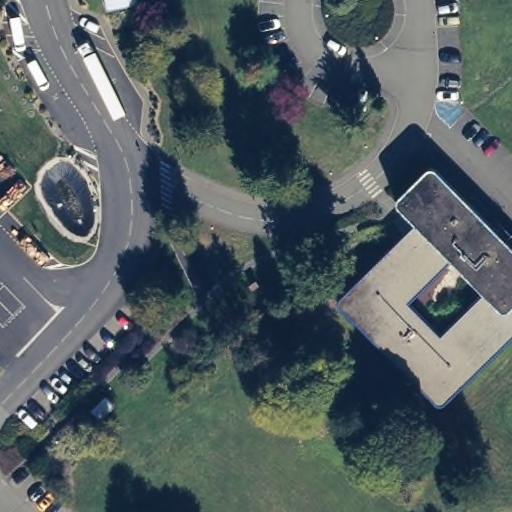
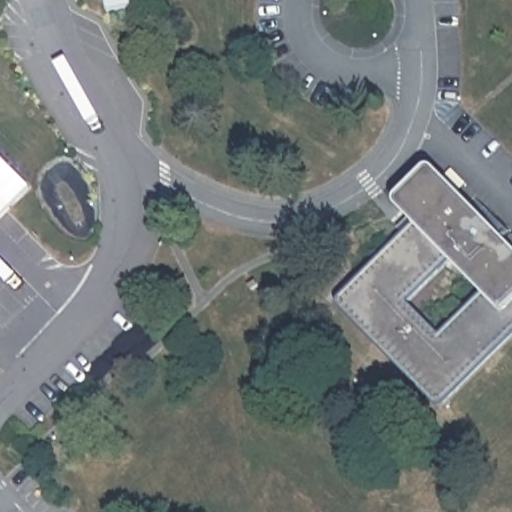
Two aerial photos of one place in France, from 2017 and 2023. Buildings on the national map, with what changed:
unchanged [(105,11),(103,0),(137,0),(138,6),(105,11)]
unchanged [(446,405),(443,404),(441,403),(351,313),(348,310),(346,307),(344,305),(343,301),(343,299),(344,296),(346,293),(419,222),(407,210),(403,205),(402,202),(401,200),(402,196),(404,194),(429,170),(431,169),(432,167),(434,167),(437,167),(439,168),(443,170),(512,239),(512,342),(451,402),(449,403),(446,405)]

